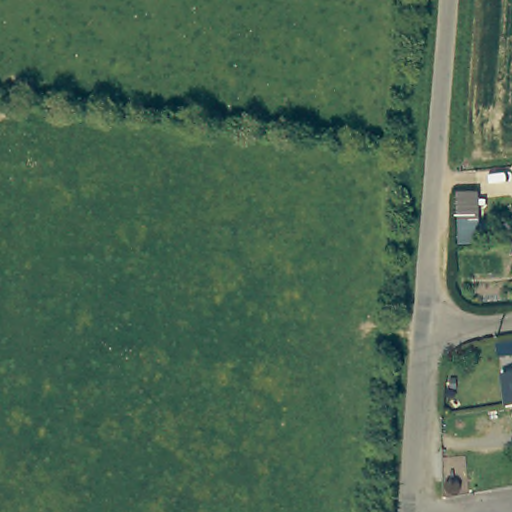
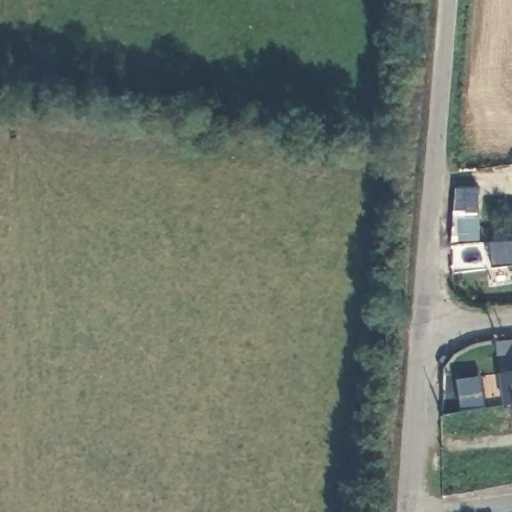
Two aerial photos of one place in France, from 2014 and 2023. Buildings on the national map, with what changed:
unchanged [(480,188),(480,241),(460,241),(460,188),(480,188)]
unchanged [(512,339),(512,351),(502,353),(501,340),(512,339)]
unchanged [(510,402),(506,371),(512,370),(512,402),(510,402)]

